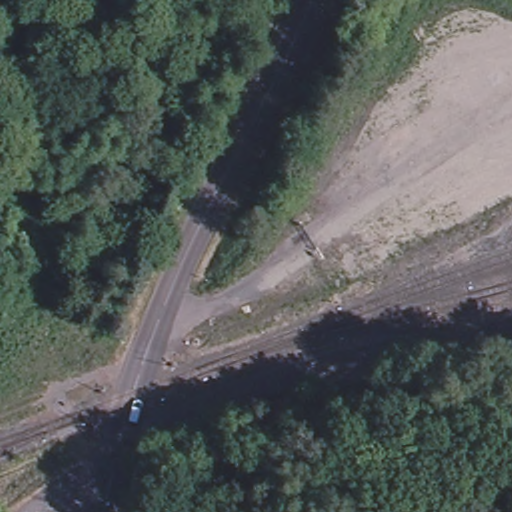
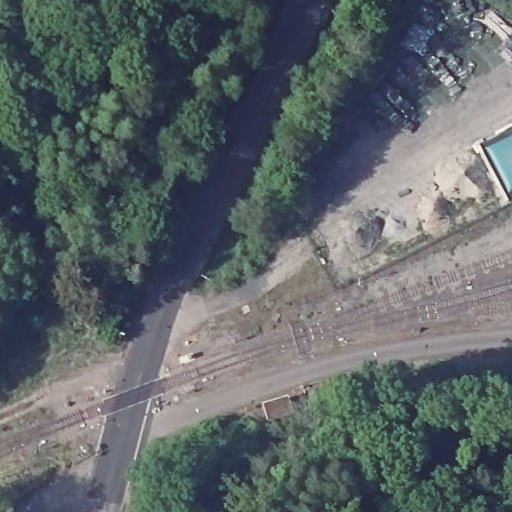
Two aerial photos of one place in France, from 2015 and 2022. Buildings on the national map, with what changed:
unchanged [(261,410),(285,403),(288,410),(289,417),(266,425),(263,415),(261,410)]
unchanged [(58,472),(66,465),(70,471),(62,478),(58,472)]

